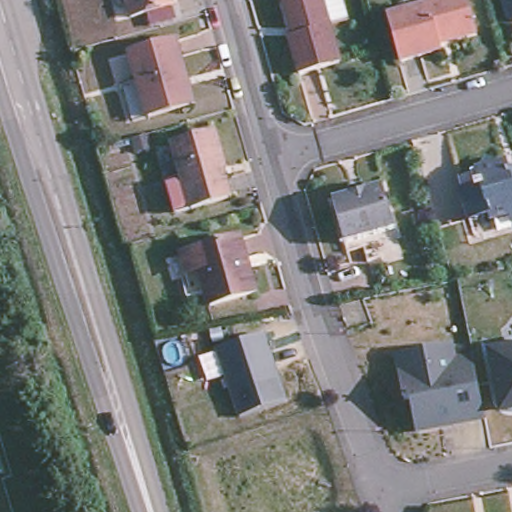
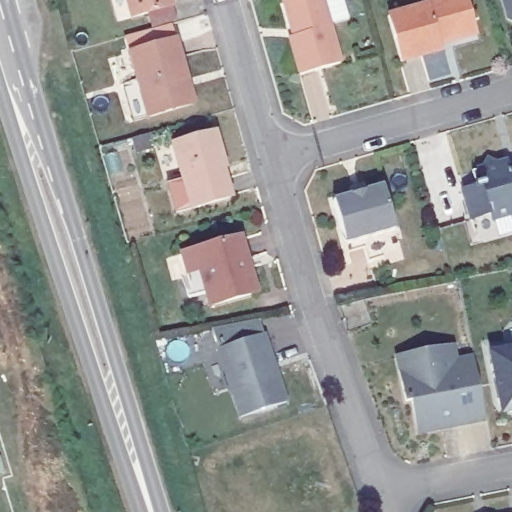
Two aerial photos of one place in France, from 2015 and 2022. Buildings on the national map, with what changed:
unchanged [(175,2),(132,14),(128,0),(174,0),(175,2)]
unchanged [(330,20),(341,59),(301,71),(291,36),(299,33),(296,24),(291,25),(284,0),(324,0),(330,20)]
unchanged [(442,47),(402,59),(389,14),(427,3),(427,0),(468,0),(477,32),(455,37),(441,42),(442,47)]
unchanged [(509,16),(505,0),(512,0),(512,17),(509,16)]
unchanged [(124,90),(139,86),(130,55),(177,42),(188,82),(195,105),(188,107),(147,118),(133,122),(124,90)]
unchanged [(170,186),(183,182),(174,147),(217,135),(226,170),(222,171),(231,199),(191,210),(177,214),(170,186)]
unchanged [(497,217),(495,211),(475,217),(468,190),(481,186),(480,182),(477,170),(484,168),(486,167),(494,159),(501,162),(511,160),(512,164),(512,214),(497,217)]
unchanged [(342,256),(340,246),(327,203),(345,197),(343,191),(358,187),(360,194),(377,189),(390,232),(357,241),(359,251),(342,256)]
unchanged [(182,251),(194,247),(240,235),(246,259),(242,260),(251,291),(209,302),(206,290),(194,293),(182,251)]
unchanged [(274,372),(284,402),(238,417),(215,348),(261,332),(266,348),(274,372)]
unchanged [(420,432),(414,398),(407,400),(399,355),(429,349),(456,344),(459,359),(476,356),(488,418),(456,425),(444,427),(420,432)]
unchanged [(512,411),(511,411),(509,411),(508,411),(507,410),(506,410),(505,410),(504,409),(503,409),(502,407),(501,407),(500,406),(498,405),(497,403),(497,402),(496,401),(496,400),(496,399),(496,398),(487,352),(512,346),(512,411)]

